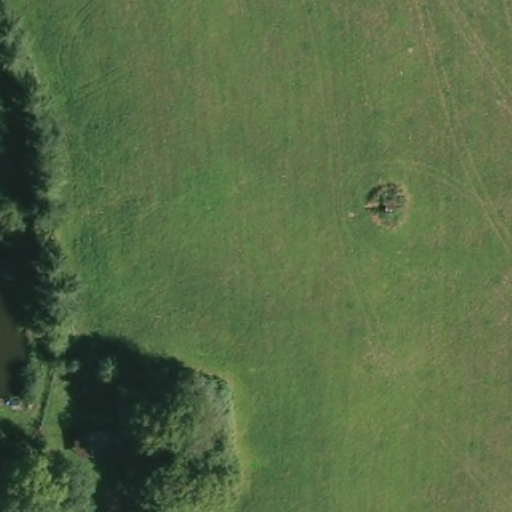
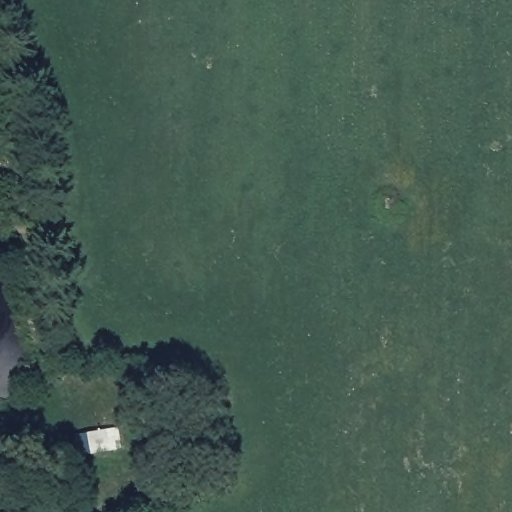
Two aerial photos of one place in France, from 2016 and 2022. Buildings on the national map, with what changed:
unchanged [(74,457),(70,436),(115,425),(120,446),(74,457)]

